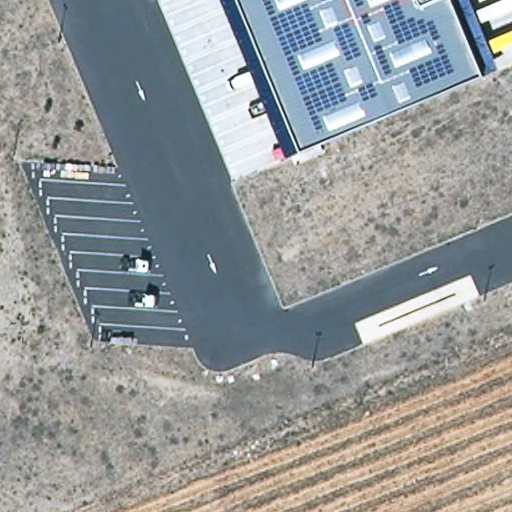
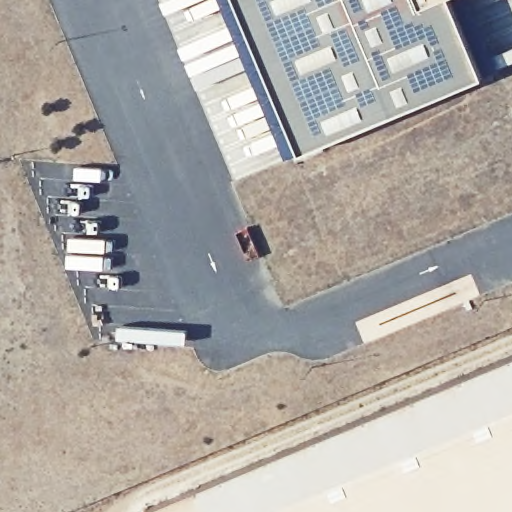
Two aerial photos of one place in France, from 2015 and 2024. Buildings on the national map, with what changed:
unchanged [(304,157),(288,164),(219,0),(237,0),(304,157)]
unchanged [(488,78),(304,157),(237,0),(451,0),(488,78)]
new [(512,357),(512,512),(148,512),(146,509),(512,357)]

